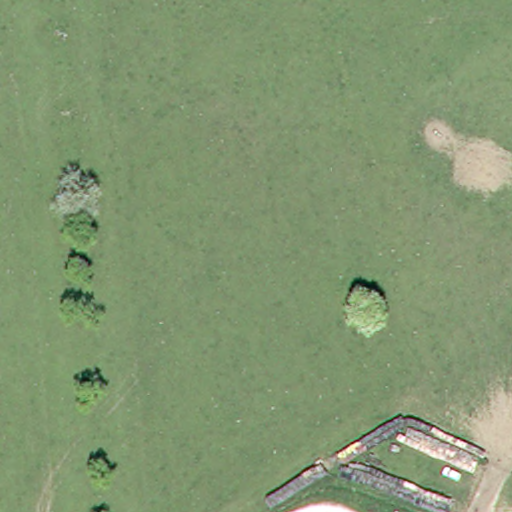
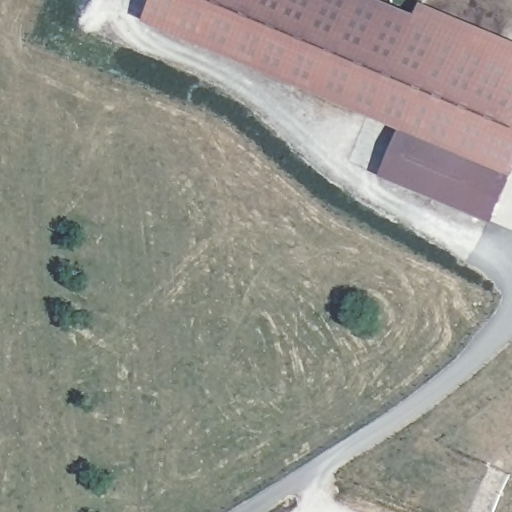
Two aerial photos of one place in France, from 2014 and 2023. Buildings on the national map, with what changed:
new [(156,0),(384,0),(416,14),(421,2),(512,40),(512,176),(492,222),(382,176),(401,129),(147,22),(156,0)]

